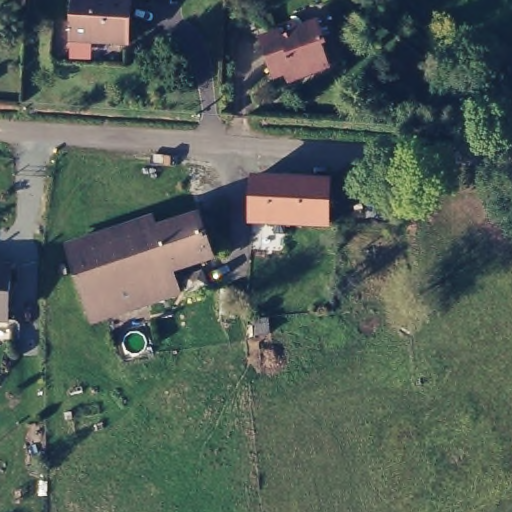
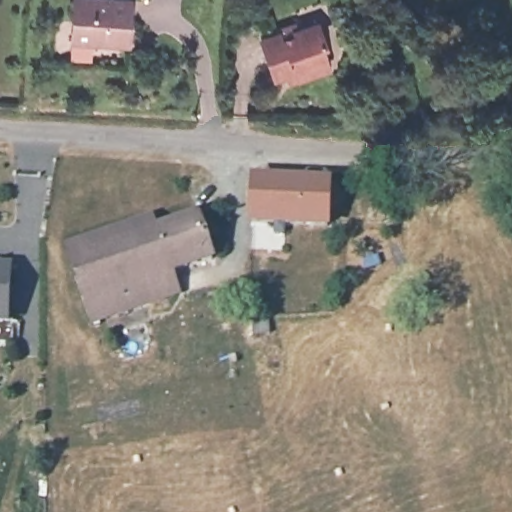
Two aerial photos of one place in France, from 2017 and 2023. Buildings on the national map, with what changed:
unchanged [(67,36),(69,0),(126,0),(123,40),(67,36)]
unchanged [(287,69),(275,74),(262,35),(278,29),(277,25),(294,19),(297,25),(317,19),(325,40),(321,41),(329,63),(297,75),(290,77),(287,69)]
unchanged [(275,229),(275,219),(251,217),(254,174),(330,177),(327,221),(285,219),(285,229),(275,229)]
unchanged [(87,311),(62,237),(107,221),(112,232),(194,205),(209,249),(168,262),(175,283),(112,303),(102,306),(87,311)]
unchanged [(9,325),(0,325),(0,262),(11,262),(9,325)]
unchanged [(269,318),(271,333),(254,335),(252,320),(269,318)]

